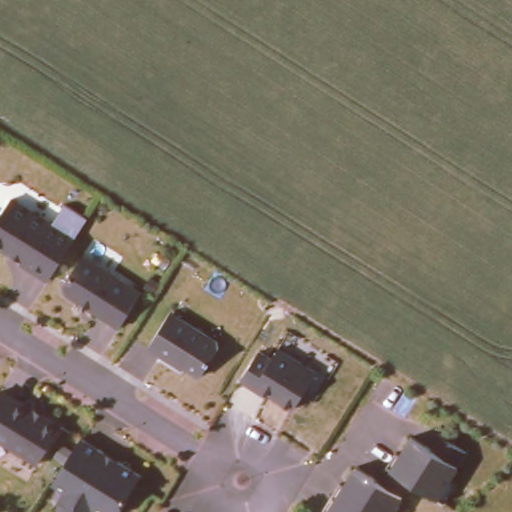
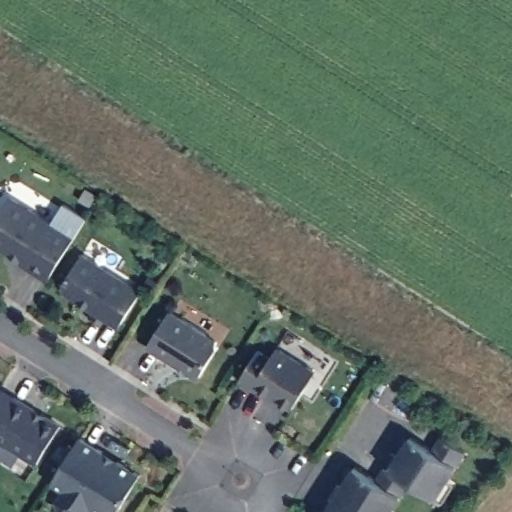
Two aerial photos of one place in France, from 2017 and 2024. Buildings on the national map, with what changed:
unchanged [(0,219),(17,196),(77,235),(50,275),(0,242),(0,219)]
unchanged [(142,291),(118,325),(65,289),(85,253),(142,291)]
unchanged [(152,344),(175,311),(225,343),(205,375),(152,344)]
unchanged [(297,408),(242,377),(257,346),(275,353),(280,347),(320,366),(297,408)]
unchanged [(37,464),(0,440),(0,384),(65,420),(37,464)]
unchanged [(53,505),(63,488),(54,481),(84,433),(141,471),(117,512),(98,512),(87,506),(83,512),(63,512),(53,505)]
unchanged [(431,448),(440,436),(467,453),(459,468),(439,502),(386,471),(410,437),(431,448)]
unchanged [(402,494),(391,512),(326,512),(355,465),(402,494)]

